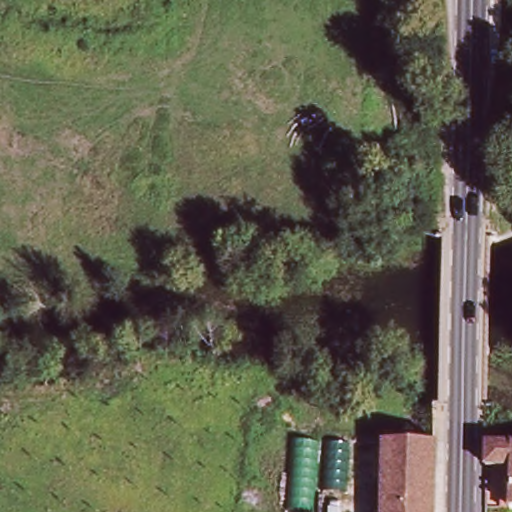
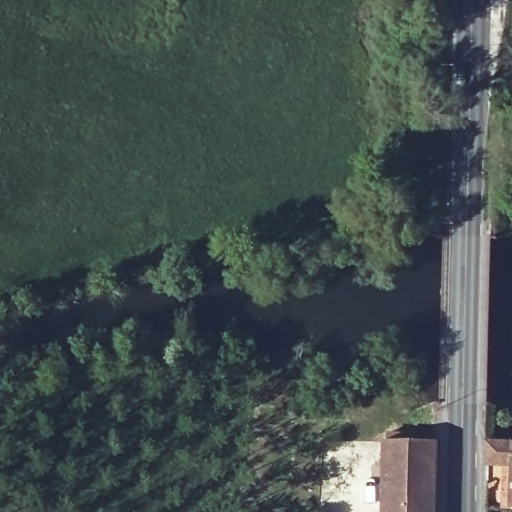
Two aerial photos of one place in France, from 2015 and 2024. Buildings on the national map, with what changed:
unchanged [(380,512),(380,434),(437,436),(434,512),(380,512)]
unchanged [(510,448),(512,448),(512,512),(485,512),(485,448),(510,448)]

